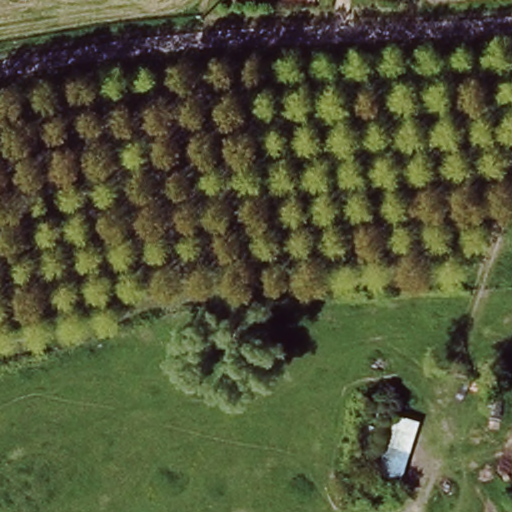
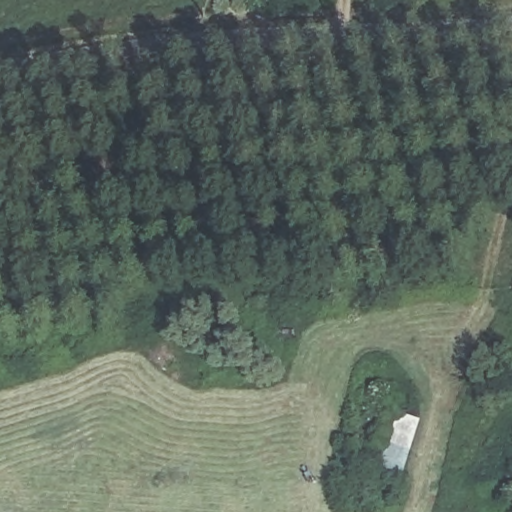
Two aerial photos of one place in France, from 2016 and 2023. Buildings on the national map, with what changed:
unchanged [(385,411),(415,420),(401,480),(369,466),(385,411)]

